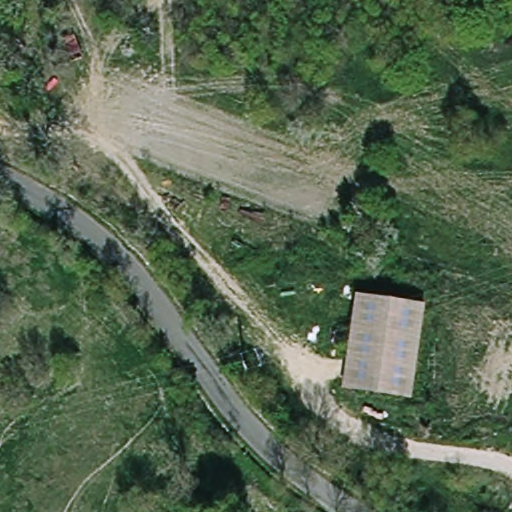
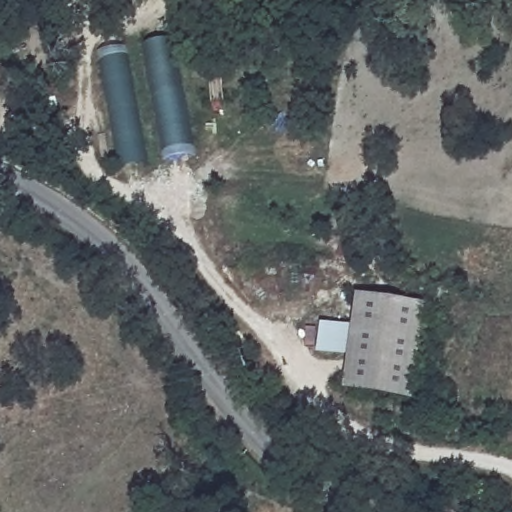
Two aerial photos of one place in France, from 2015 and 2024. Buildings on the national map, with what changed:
new [(173,36),(193,152),(162,158),(142,42),(173,36)]
new [(127,47),(147,163),(118,170),(97,54),(127,47)]
unchanged [(412,398),(344,386),(361,295),(429,306),(412,398)]

